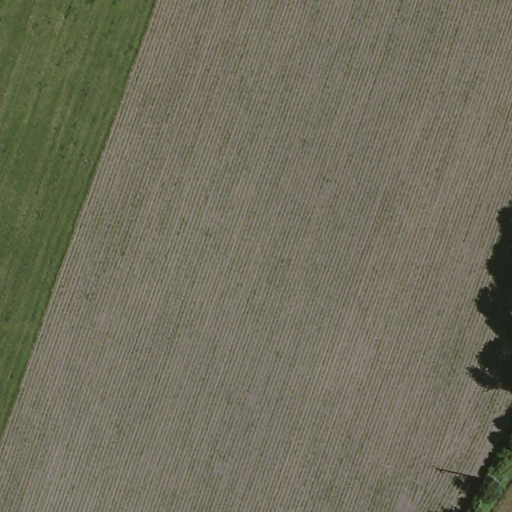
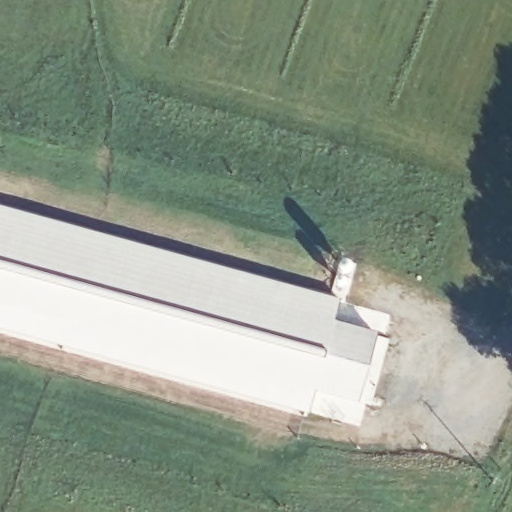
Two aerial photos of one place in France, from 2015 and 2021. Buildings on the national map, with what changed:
new [(335,322),(378,334),(361,399),(317,387),(311,411),(0,326),(0,205),(342,298),(335,322)]

